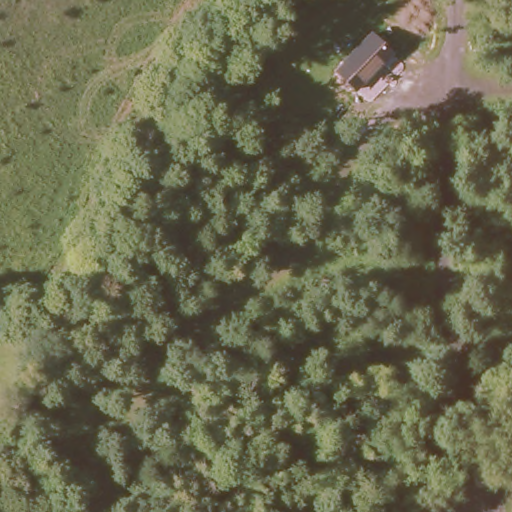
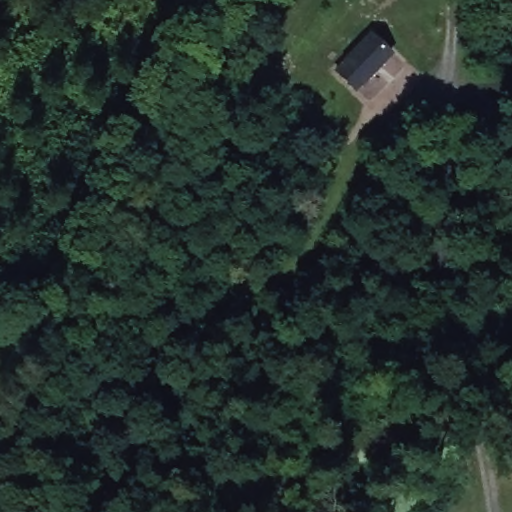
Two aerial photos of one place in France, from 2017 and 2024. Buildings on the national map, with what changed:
unchanged [(392,54),(360,84),(342,66),(372,36),(392,54)]

